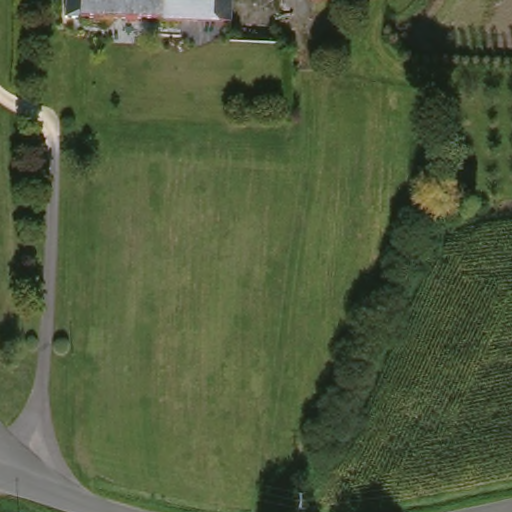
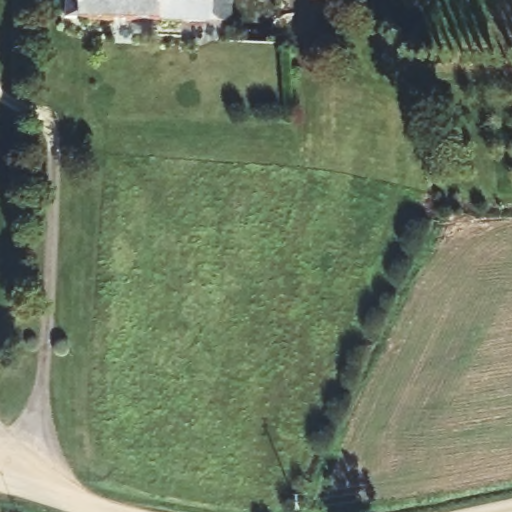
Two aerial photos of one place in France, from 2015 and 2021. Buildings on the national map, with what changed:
unchanged [(244,21),(214,20),(99,18),(78,17),(80,0),(245,0),(244,21)]

